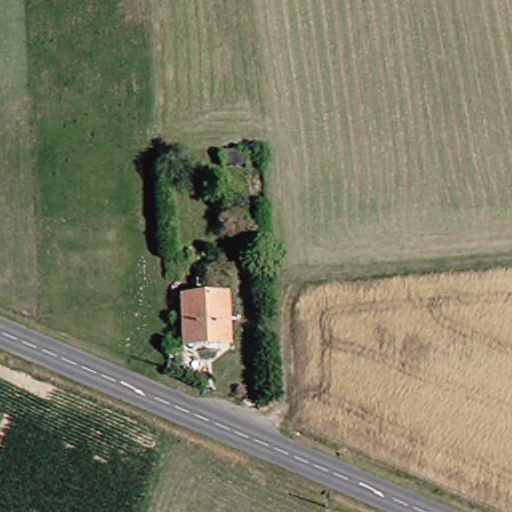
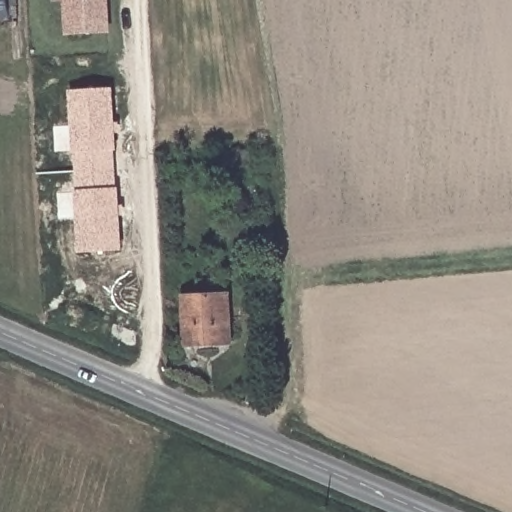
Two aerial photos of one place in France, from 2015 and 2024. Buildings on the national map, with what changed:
new [(107,31),(68,33),(66,0),(105,0),(107,31)]
new [(122,250),(78,254),(68,90),(114,88),(122,250)]
unchanged [(225,350),(188,350),(187,302),(197,300),(198,285),(222,285),(225,350)]

